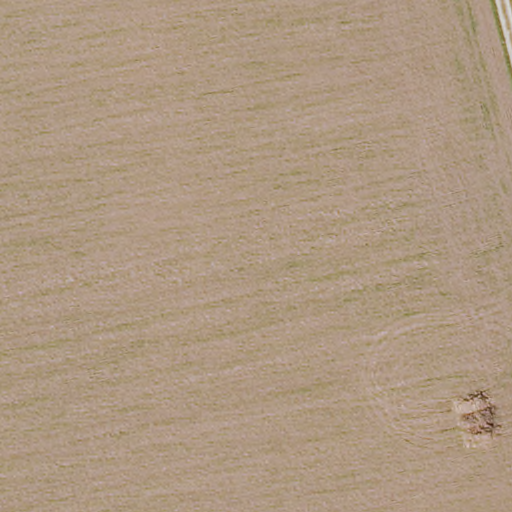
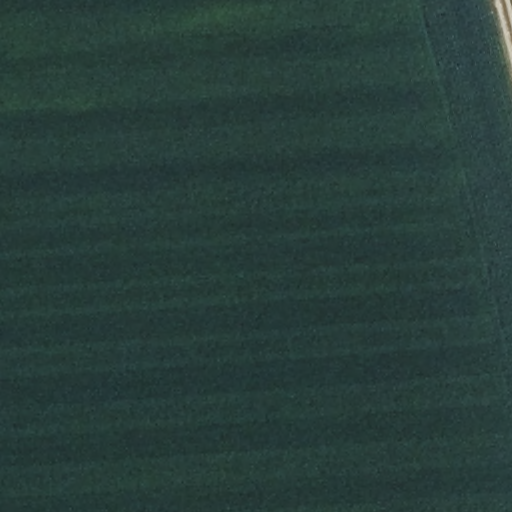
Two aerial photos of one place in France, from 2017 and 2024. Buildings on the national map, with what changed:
[]

